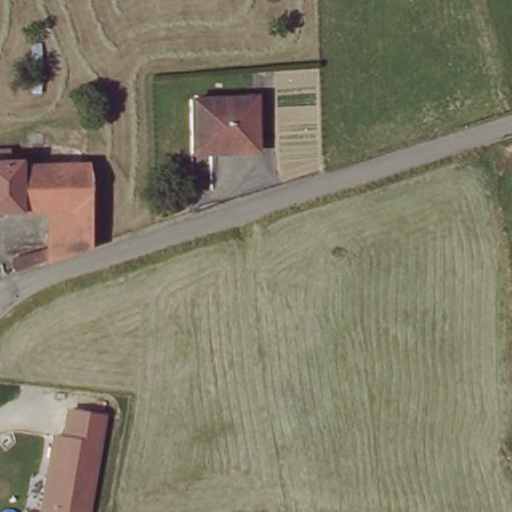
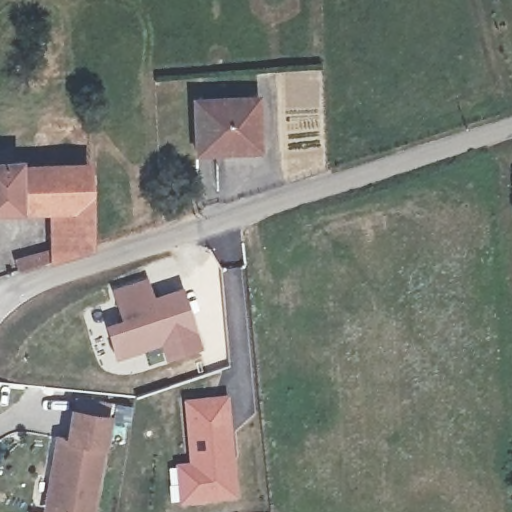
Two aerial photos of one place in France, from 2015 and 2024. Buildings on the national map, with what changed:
unchanged [(257,145),(194,145),(194,95),(259,95),(257,145)]
unchanged [(14,255),(42,245),(53,242),(53,205),(0,205),(0,147),(16,146),(16,156),(22,156),(29,156),(29,161),(91,161),(92,212),(93,245),(44,259),(17,266),(14,255)]
new [(126,325),(117,294),(147,285),(156,314),(153,302),(163,300),(184,293),(201,350),(171,360),(166,344),(118,358),(109,330),(126,325)]
new [(228,393),(237,497),(179,503),(174,462),(188,461),(182,396),(228,393)]
unchanged [(57,435),(65,435),(70,410),(109,416),(97,512),(47,512),(57,435)]

